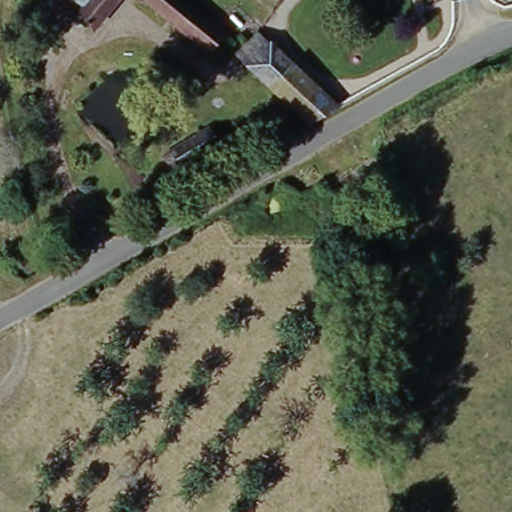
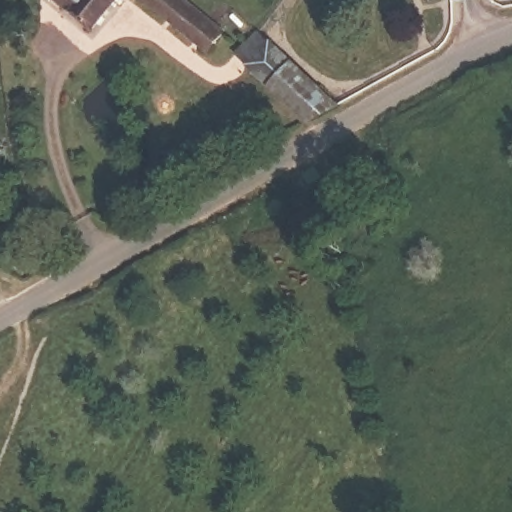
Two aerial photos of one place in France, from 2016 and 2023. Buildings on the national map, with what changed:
unchanged [(54,0),(94,0),(75,19),(54,0)]
unchanged [(75,19),(94,0),(125,0),(92,35),(75,19)]
unchanged [(139,0),(181,0),(223,32),(209,52),(139,0)]
unchanged [(307,116),(233,59),(253,35),(336,99),(307,116)]
unchanged [(183,170),(174,155),(198,139),(219,125),(229,139),(216,148),(183,170)]

